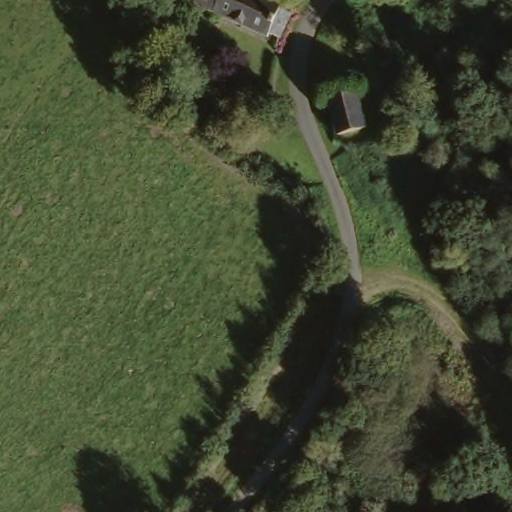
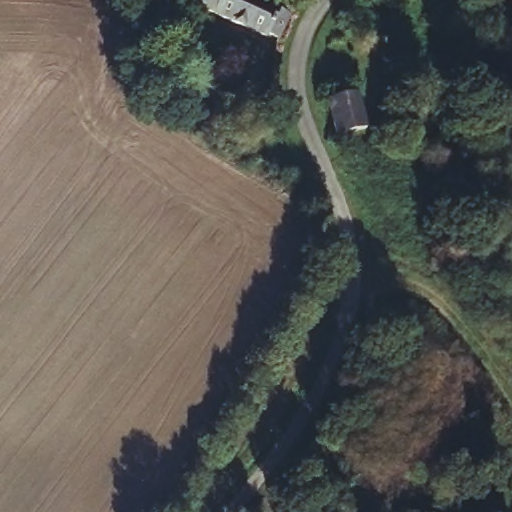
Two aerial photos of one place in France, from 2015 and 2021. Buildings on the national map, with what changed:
unchanged [(266,34),(188,0),(271,0),(276,3),(286,2),(291,11),(281,33),(270,28),(266,34)]
unchanged [(358,94),(366,128),(334,135),(334,132),(327,99),(358,94)]

